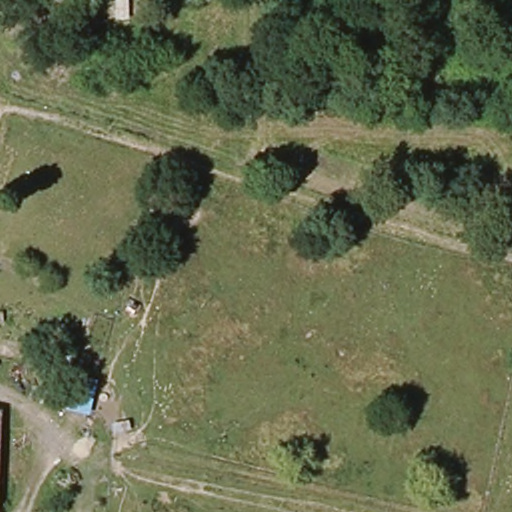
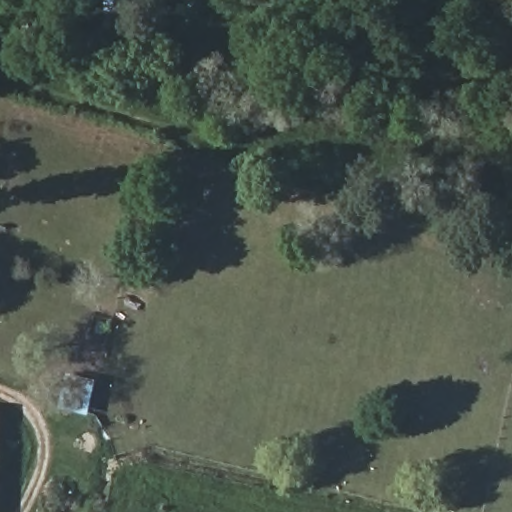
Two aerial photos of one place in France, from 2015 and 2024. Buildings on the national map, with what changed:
unchanged [(2,512),(0,512),(0,418),(8,418),(2,512)]

